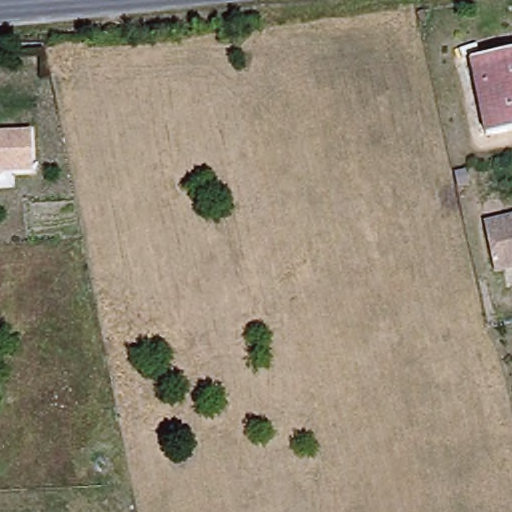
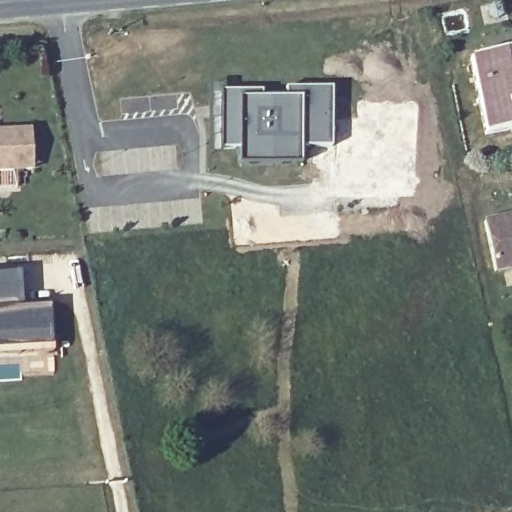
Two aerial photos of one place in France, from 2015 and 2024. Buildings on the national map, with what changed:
unchanged [(467,56),(512,49),(512,126),(481,131),(467,56)]
new [(220,87),(260,88),(261,95),(285,95),(285,85),(331,85),(331,144),(301,144),(301,161),(238,161),(238,146),(221,146),(221,109),(224,109),(224,104),(220,102),(220,87)]
unchanged [(32,169),(0,169),(0,132),(31,131),(32,169)]
unchanged [(512,267),(493,271),(482,223),(512,216),(512,267)]
new [(22,270),(25,304),(0,306),(0,272),(22,270)]
new [(25,304),(50,302),(54,345),(0,348),(0,306),(25,304)]

